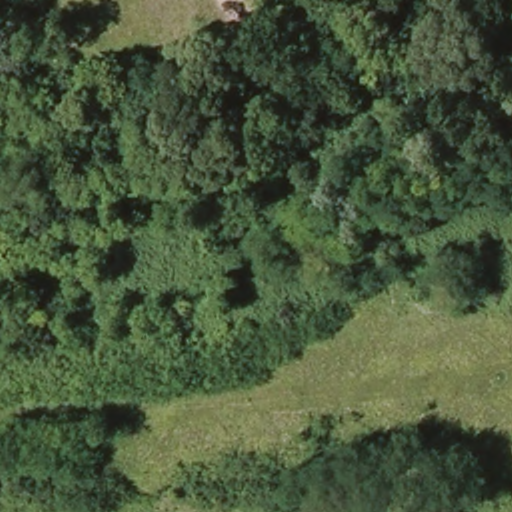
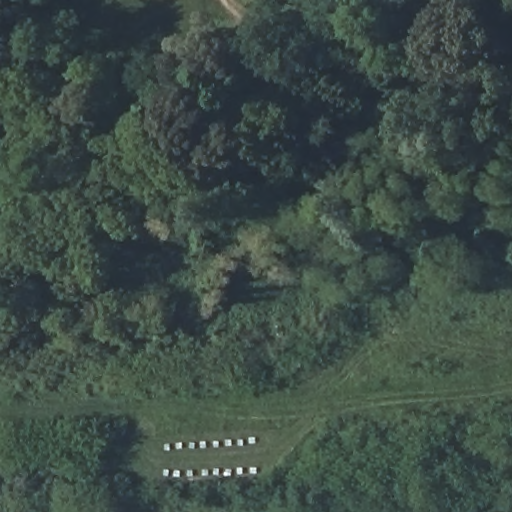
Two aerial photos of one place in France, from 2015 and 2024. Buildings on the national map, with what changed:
[]

